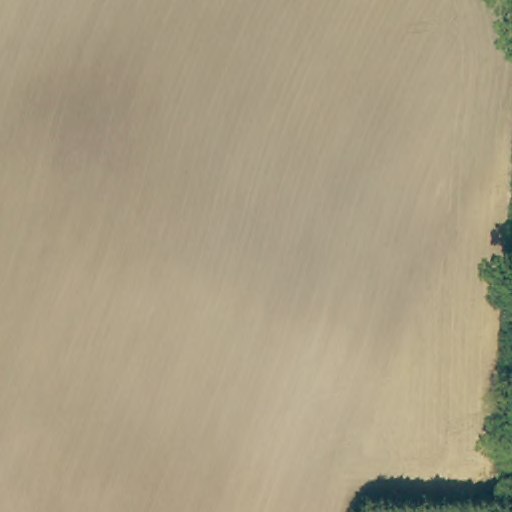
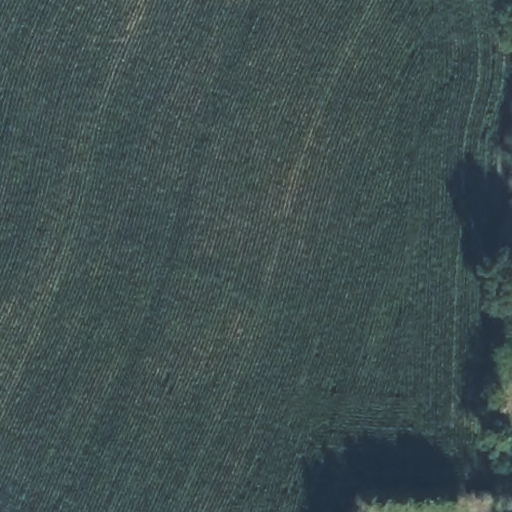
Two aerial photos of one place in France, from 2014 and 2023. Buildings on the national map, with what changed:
[]

